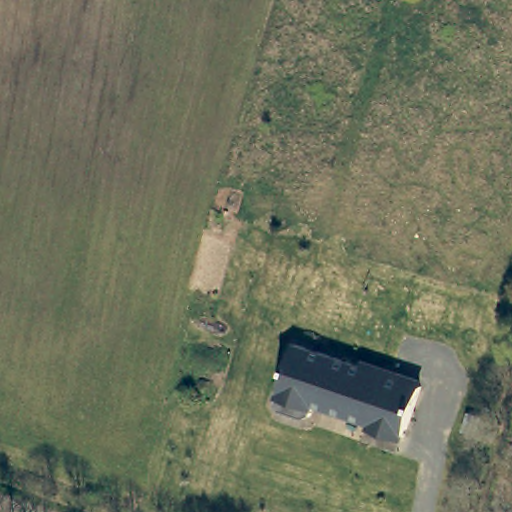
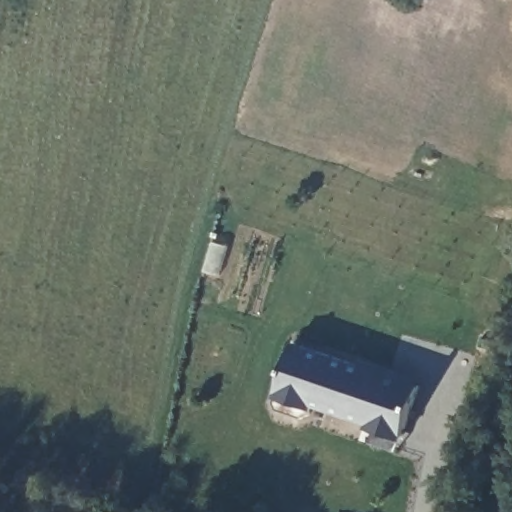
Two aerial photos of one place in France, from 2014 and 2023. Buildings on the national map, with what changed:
unchanged [(406,436),(315,405),(312,415),(303,418),(280,410),(276,402),(296,343),(423,386),(406,436)]

